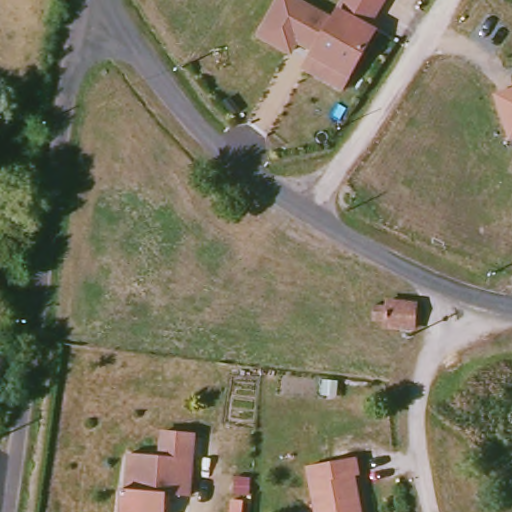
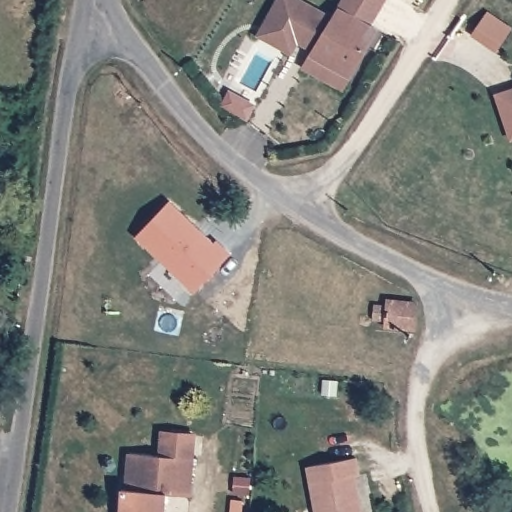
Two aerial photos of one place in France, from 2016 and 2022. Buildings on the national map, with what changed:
unchanged [(267,29),(282,0),(298,0),(336,19),(342,9),(346,0),(385,0),(372,25),(380,29),(354,76),(315,55),(320,47),(303,36),(299,45),(295,52),(264,37),(267,29)]
unchanged [(512,86),(512,140),(510,140),(495,92),(512,86)]
unchanged [(14,189),(0,207),(0,181),(2,178),(14,189)]
demolished [(512,191),(512,237),(492,229),(512,191)]
new [(171,198),(216,241),(218,240),(231,254),(195,294),(136,236),(171,198)]
unchanged [(414,300),(415,332),(383,332),(382,325),(370,324),(371,306),(383,307),(383,299),(414,300)]
unchanged [(338,384),(336,399),(320,397),(322,382),(338,384)]
unchanged [(168,493),(166,512),(121,512),(123,488),(128,488),(132,452),(163,455),(165,432),(196,435),(194,458),(190,495),(168,493)]
unchanged [(363,459),(365,476),(360,477),(366,507),(364,512),(322,512),(315,468),(363,459)]

